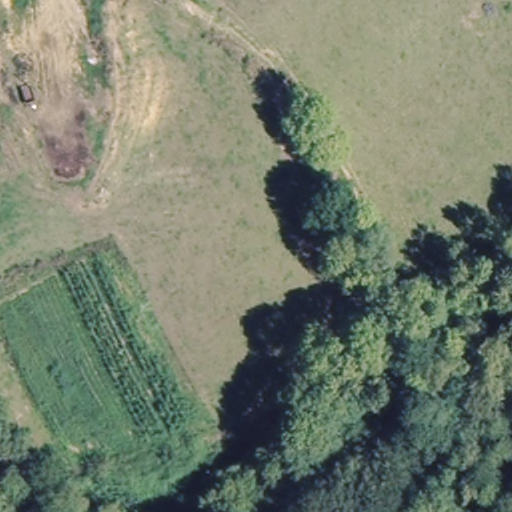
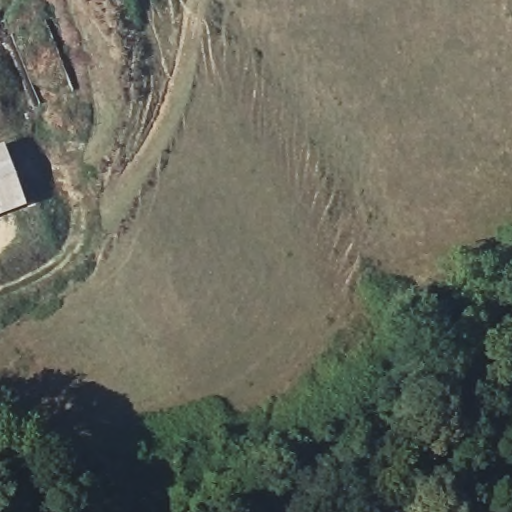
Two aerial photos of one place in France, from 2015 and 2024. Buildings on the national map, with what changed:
new [(0,220),(0,149),(2,148),(25,211),(0,220)]

